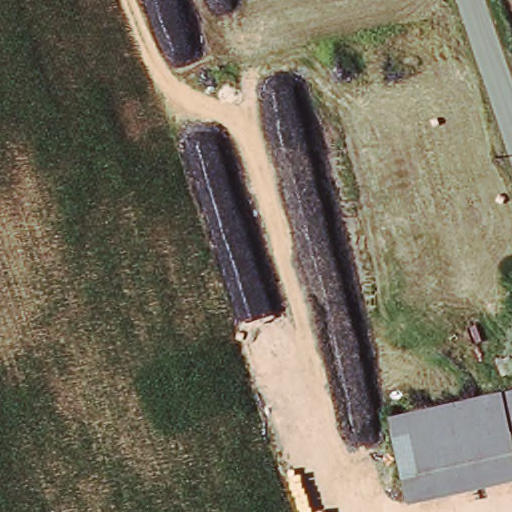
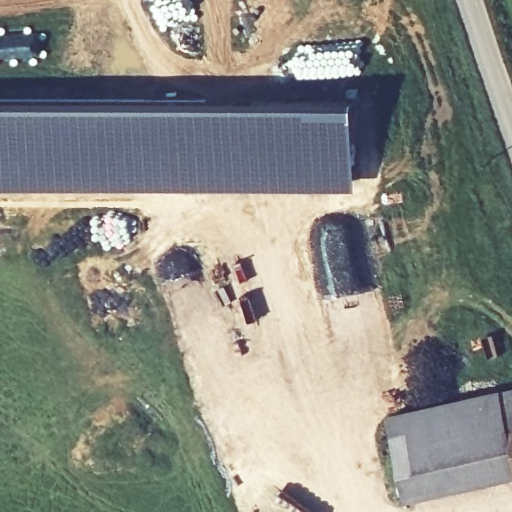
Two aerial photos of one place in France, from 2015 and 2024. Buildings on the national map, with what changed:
new [(172,104),(358,102),(358,190),(124,190),(0,190),(0,104),(172,104)]
unchanged [(512,426),(502,390),(512,387),(512,426)]
unchanged [(512,426),(512,456),(508,457),(512,474),(512,483),(403,507),(382,415),(502,390),(512,426)]
unchanged [(512,456),(512,474),(508,457),(512,456)]

